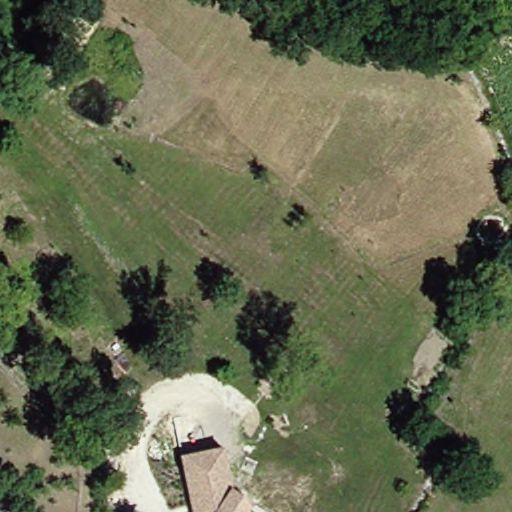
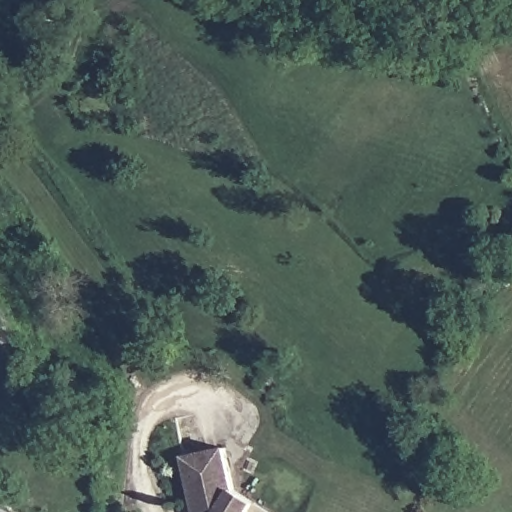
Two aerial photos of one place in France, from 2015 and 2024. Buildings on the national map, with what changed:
unchanged [(183,458),(223,448),(233,490),(253,506),(247,512),(192,512),(191,504),(183,458)]

